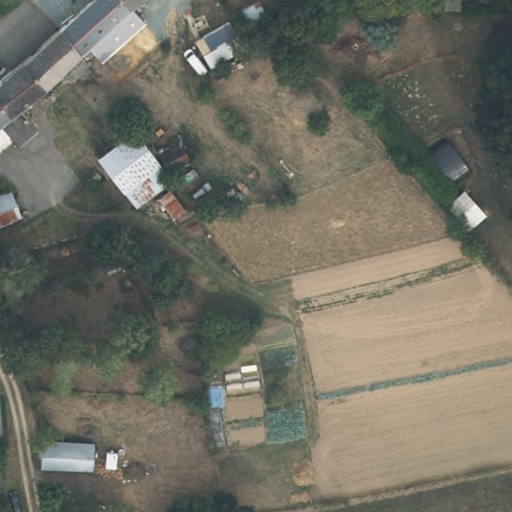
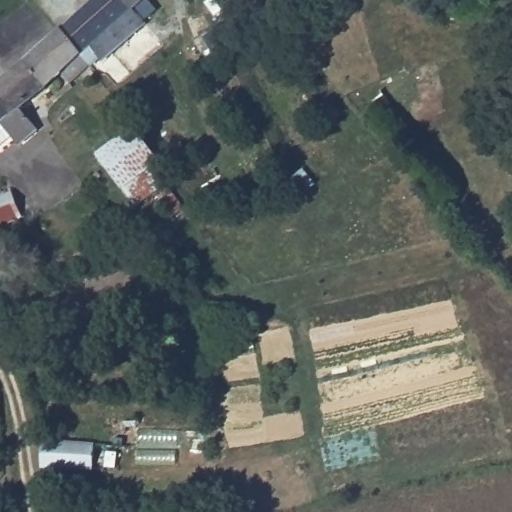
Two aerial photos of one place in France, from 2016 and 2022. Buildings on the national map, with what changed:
unchanged [(108,62),(100,55),(89,65),(58,30),(91,0),(129,44),(108,62)]
unchanged [(91,0),(132,0),(137,6),(152,22),(129,44),(91,0)]
unchanged [(145,0),(137,6),(132,0),(145,0)]
unchanged [(432,11),(433,0),(449,0),(448,12),(432,11)]
unchanged [(69,66),(25,109),(43,129),(27,145),(16,134),(0,147),(0,84),(58,30),(89,65),(79,75),(69,66)]
unchanged [(96,154),(132,126),(169,174),(136,200),(96,154)]
unchanged [(183,139),(192,157),(172,168),(162,150),(183,139)]
unchanged [(187,206),(175,214),(161,195),(172,187),(187,206)]
unchanged [(0,197),(9,194),(18,213),(21,218),(0,228),(0,197)]
unchanged [(47,463),(44,443),(95,444),(94,465),(47,463)]

